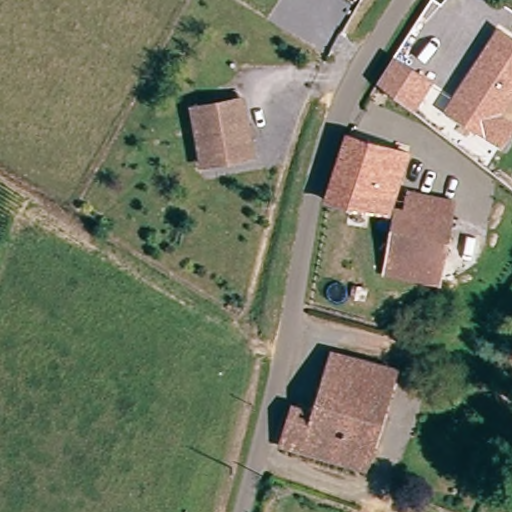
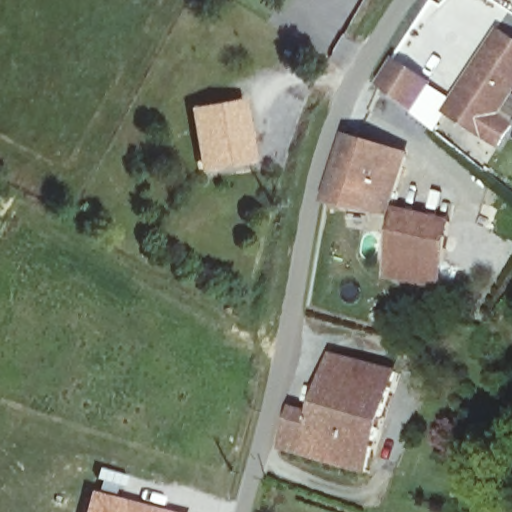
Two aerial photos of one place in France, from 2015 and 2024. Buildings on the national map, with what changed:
unchanged [(505,112),(512,118),(512,136),(500,150),(446,114),(500,27),(512,35),(512,102),(505,112)]
unchanged [(417,113),(378,84),(396,56),(436,83),(417,113)]
unchanged [(204,148),(197,105),(246,97),(254,154),(227,159),(207,163),(204,148)]
unchanged [(338,167),(350,134),(408,155),(398,190),(457,204),(436,286),(429,286),(383,277),(397,217),(332,194),(338,167)]
unchanged [(280,440),(293,408),(315,414),(335,356),(395,379),(362,469),(280,440)]
new [(182,512),(84,512),(90,489),(182,512)]

